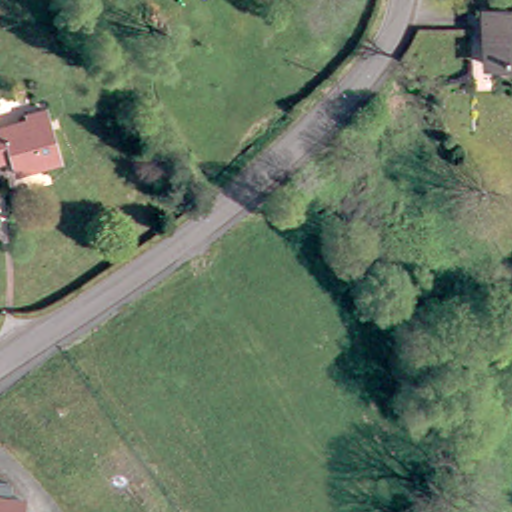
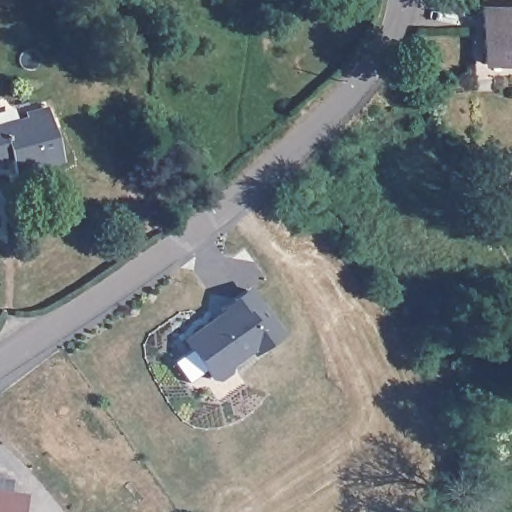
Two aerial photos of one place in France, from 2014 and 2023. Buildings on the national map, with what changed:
unchanged [(512,7),(512,57),(482,59),(479,8),(512,7)]
unchanged [(29,120),(28,115),(50,110),(61,160),(14,172),(10,156),(0,158),(0,127),(29,120)]
new [(251,351),(229,367),(231,372),(217,380),(209,377),(185,341),(221,315),(217,309),(250,286),(283,333),(253,356),(251,351)]
unchanged [(8,481),(5,494),(23,498),(19,512),(0,512),(0,479),(8,481)]

